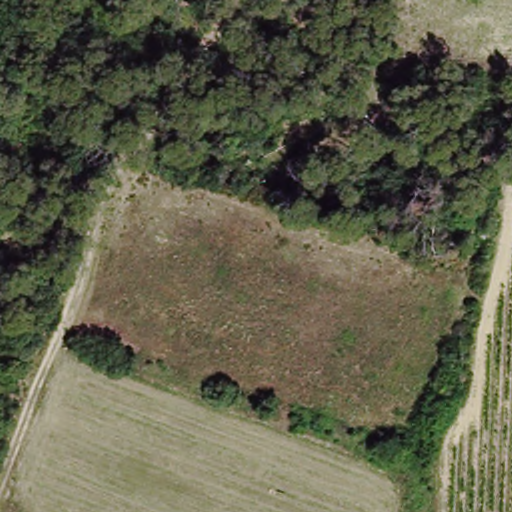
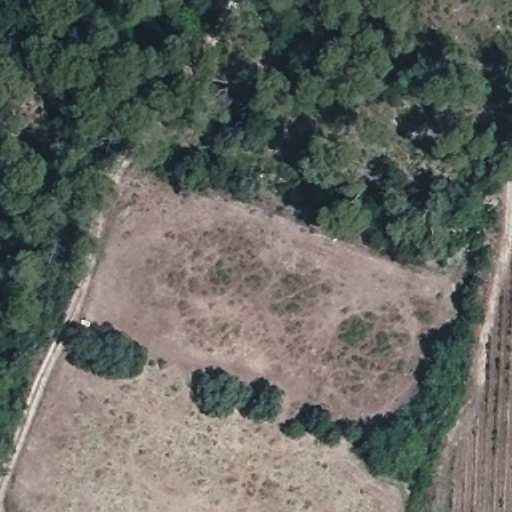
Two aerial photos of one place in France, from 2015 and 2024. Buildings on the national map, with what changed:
unchanged [(101,91),(101,109),(85,111),(86,91),(101,91)]

